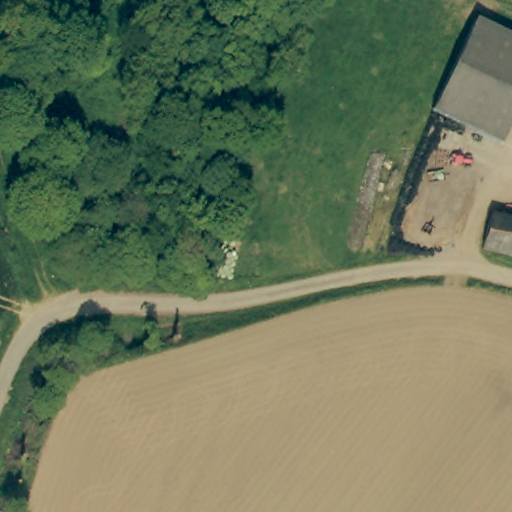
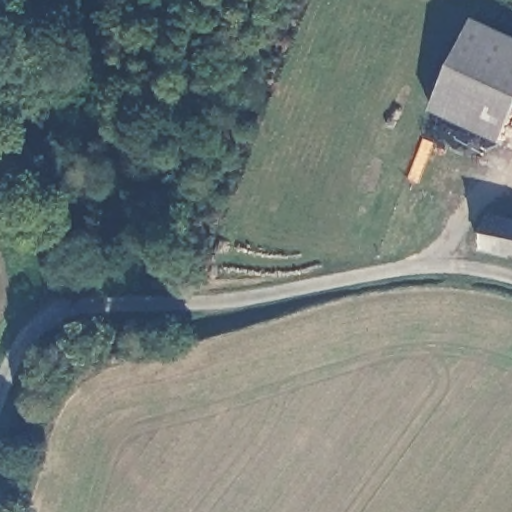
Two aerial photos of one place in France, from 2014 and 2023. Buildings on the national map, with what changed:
unchanged [(436,113),(477,17),(512,33),(512,121),(502,144),(436,113)]
unchanged [(489,212),(507,215),(512,217),(512,253),(480,247),(489,212)]

